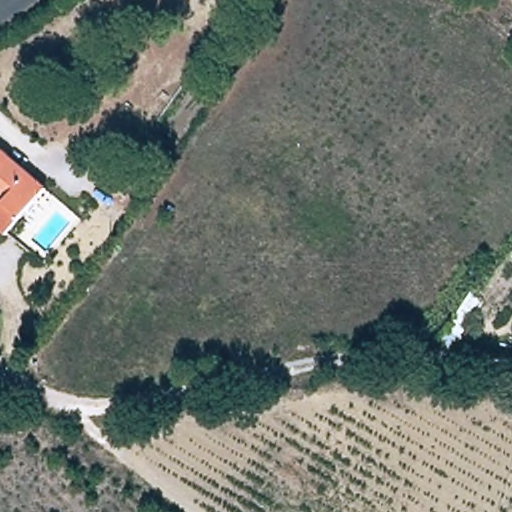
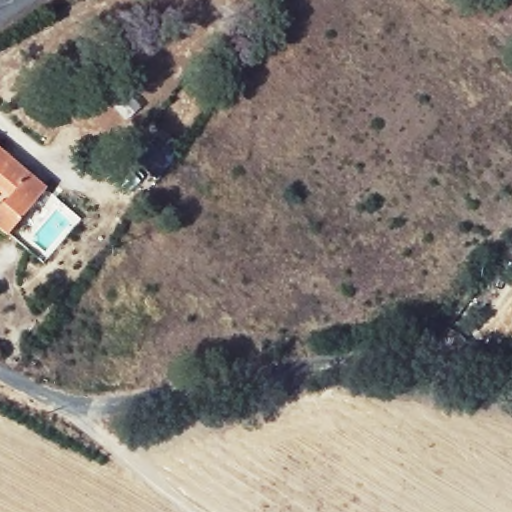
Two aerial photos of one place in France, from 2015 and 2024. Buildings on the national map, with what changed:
unchanged [(3,233),(0,231),(0,200),(2,196),(0,194),(0,150),(43,187),(3,233)]

